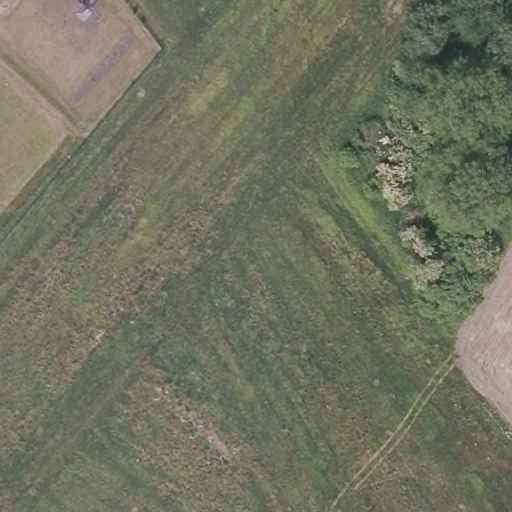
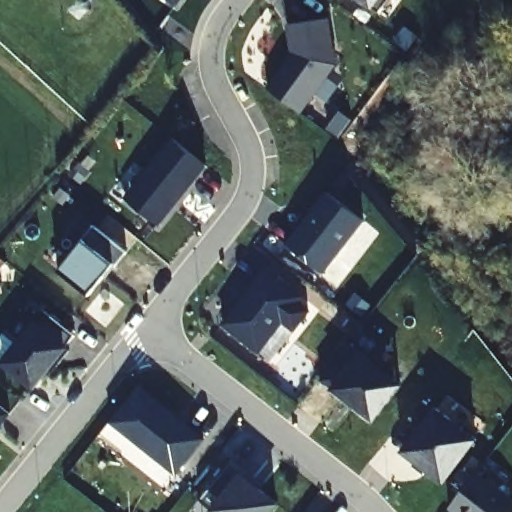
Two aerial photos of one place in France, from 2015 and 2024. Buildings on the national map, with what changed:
new [(174,0),(182,0),(180,1),(175,1),(174,0)]
new [(377,10),(362,0),(385,0),(377,10)]
new [(290,52),(285,22),(325,16),(332,62),(297,111),(265,87),(290,52)]
new [(206,165),(161,221),(124,193),(170,136),(206,165)]
new [(327,190),(365,221),(325,273),(285,242),(327,190)]
new [(125,251),(115,262),(90,293),(60,269),(83,239),(96,223),(125,251)]
new [(235,305),(238,308),(242,303),(239,300),(263,268),(299,296),(295,300),(307,309),(292,328),(280,319),(255,352),(220,324),(235,305)]
new [(75,335),(65,347),(35,385),(5,362),(35,322),(42,327),(52,315),(75,335)]
new [(374,423),(329,388),(332,385),(322,377),(347,343),(357,351),(361,349),(405,383),(374,423)]
new [(136,385),(175,416),(173,419),(182,425),(184,423),(202,438),(174,473),(108,420),(136,385)]
new [(399,452),(435,404),(480,437),(444,483),(399,452)]
new [(10,413),(0,426),(0,406),(10,413)]
new [(245,469),(242,473),(276,501),(268,512),(216,512),(198,497),(230,458),(245,469)]
new [(512,512),(453,512),(449,508),(476,471),(512,500),(512,512)]

